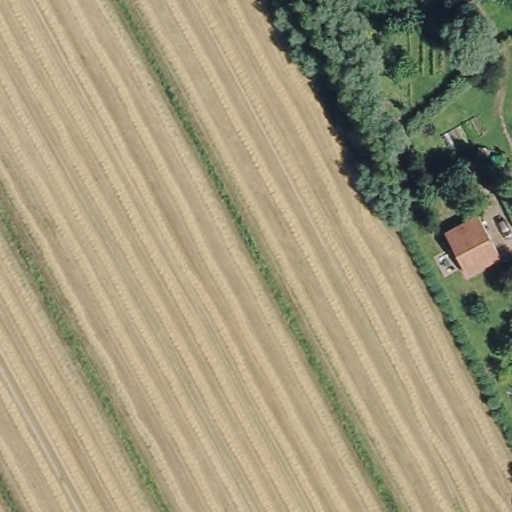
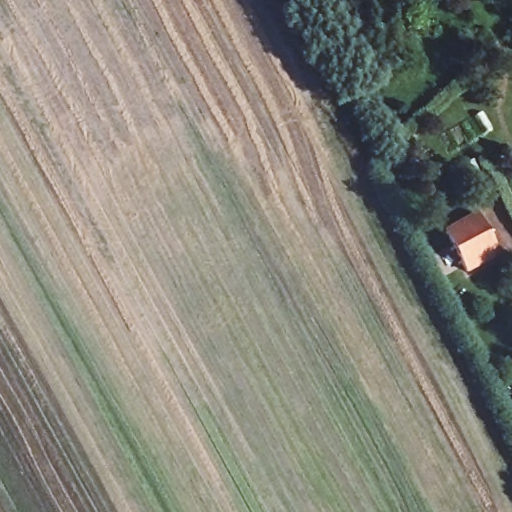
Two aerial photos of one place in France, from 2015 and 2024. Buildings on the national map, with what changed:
unchanged [(467,272),(447,233),(478,217),(499,255),(467,272)]

